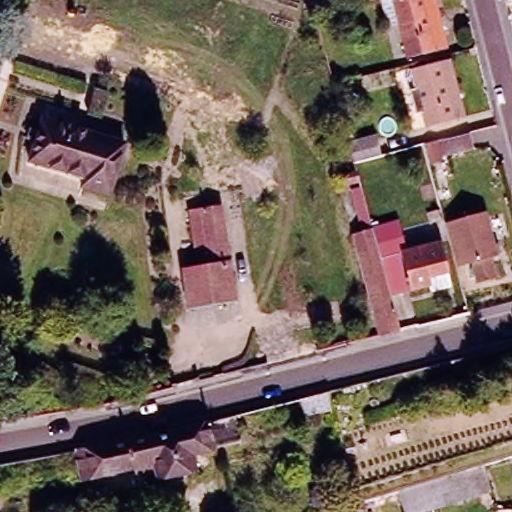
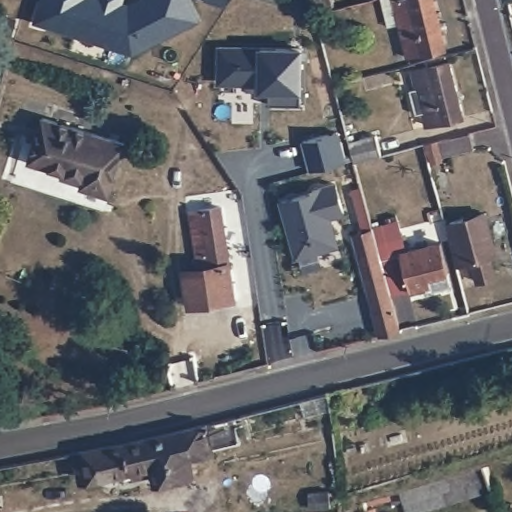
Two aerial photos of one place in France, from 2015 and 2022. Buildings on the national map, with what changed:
new [(41,0),(118,0),(127,3),(133,0),(189,0),(196,16),(132,48),(104,39),(75,30),(35,18),(41,0)]
unchanged [(390,0),(430,0),(442,50),(404,60),(390,1),(390,0)]
new [(221,43),(303,43),(303,99),(271,99),(271,84),(262,84),(262,78),(241,78),(241,75),(221,75),(221,43)]
unchanged [(465,119),(442,124),(423,129),(422,124),(420,114),(412,116),(408,98),(415,96),(409,73),(450,62),(465,119)]
unchanged [(110,196),(83,187),(85,180),(31,161),(46,118),(126,146),(110,196)]
unchanged [(376,128),(380,145),(352,153),(347,135),(376,128)]
new [(336,131),(345,160),(311,169),(303,140),(336,131)]
unchanged [(440,156),(440,161),(429,164),(423,144),(467,132),(472,148),(440,156)]
unchanged [(441,168),(445,182),(432,185),(428,172),(441,168)]
unchanged [(350,173),(355,172),(357,182),(337,187),(335,177),(350,173)]
new [(314,190),(313,188),(336,181),(345,211),(330,215),(335,232),(317,237),(320,248),(297,255),(281,199),(314,190)]
unchanged [(360,232),(355,214),(358,213),(352,188),(358,187),(370,228),(388,298),(397,332),(376,337),(350,235),(360,232)]
unchanged [(229,263),(211,266),(210,260),(198,263),(189,210),(201,208),(218,205),(229,263)]
unchanged [(488,258),(493,278),(475,282),(470,263),(458,265),(447,225),(483,216),(495,256),(488,258)]
unchanged [(392,222),(398,242),(383,247),(387,259),(436,246),(448,288),(428,293),(427,287),(388,298),(370,228),(392,222)]
unchanged [(430,233),(443,230),(447,243),(434,246),(430,233)]
unchanged [(190,304),(184,270),(211,266),(229,263),(235,297),(190,304)]
unchanged [(80,451),(123,443),(207,423),(237,415),(245,443),(214,451),(190,456),(195,474),(161,482),(157,463),(152,464),(147,472),(140,474),(130,469),(85,480),(80,451)]
unchanged [(446,475),(480,465),(486,489),(412,512),(410,512),(402,488),(446,475)]
unchanged [(363,512),(338,512),(338,509),(361,502),(363,512)]
unchanged [(508,511),(512,511),(512,512),(509,512),(508,511)]

